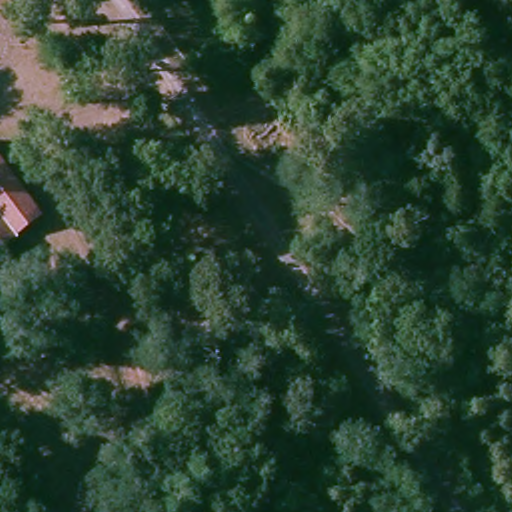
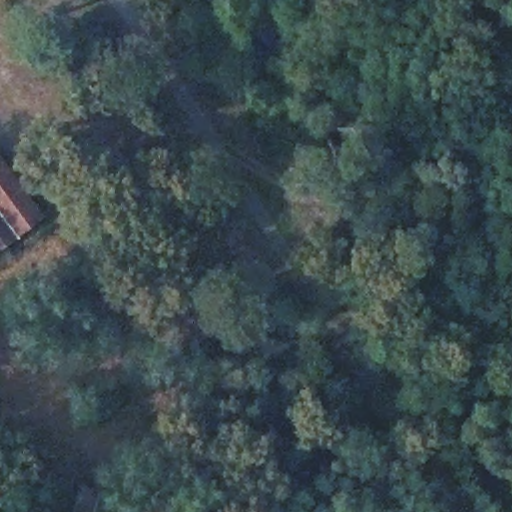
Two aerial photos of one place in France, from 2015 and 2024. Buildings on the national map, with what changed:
unchanged [(102,84),(57,22),(72,12),(117,70),(102,84)]
unchanged [(0,243),(0,169),(36,217),(0,243)]
unchanged [(112,490),(105,512),(72,512),(84,478),(112,490)]

